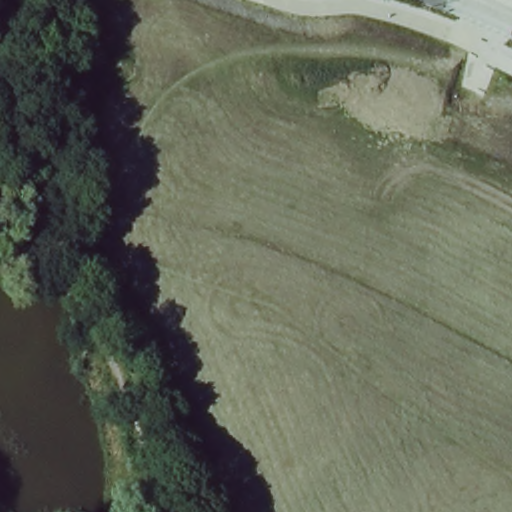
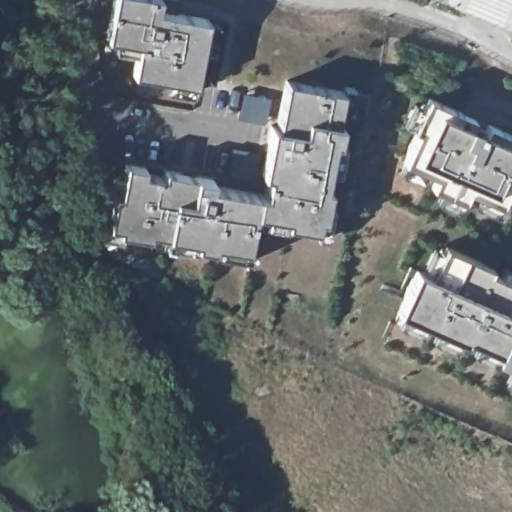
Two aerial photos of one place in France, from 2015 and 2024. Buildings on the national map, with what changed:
new [(158,0),(156,9),(206,19),(195,85),(132,74),(137,42),(107,36),(113,0),(158,0)]
new [(143,166),(142,174),(164,178),(166,171),(211,178),(210,186),(265,197),(269,175),(262,174),(272,126),(278,127),(288,81),(342,91),(336,125),(340,125),(337,143),(332,142),(324,189),(329,189),(323,220),(319,220),(316,230),(287,225),(288,219),(255,213),(248,251),(215,245),(214,249),(197,246),(198,241),(149,232),(148,237),(120,232),(120,227),(108,225),(113,196),(120,196),(125,164),(143,166)]
new [(509,165),(488,212),(408,178),(431,130),(509,165)]
new [(485,288),(512,301),(512,327),(495,370),(395,327),(412,287),(427,293),(438,261),(489,281),(485,288)]
new [(512,382),(512,394),(508,392),(512,382)]

